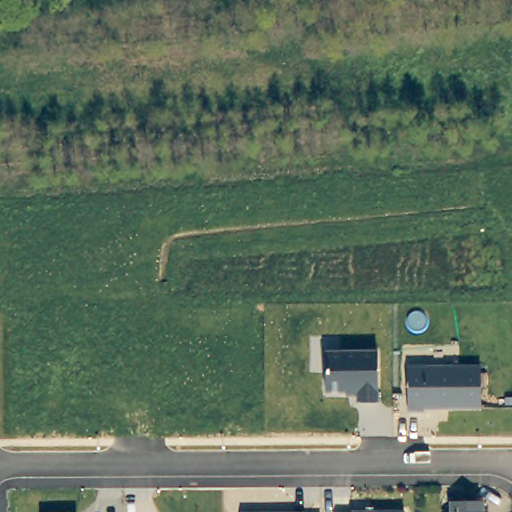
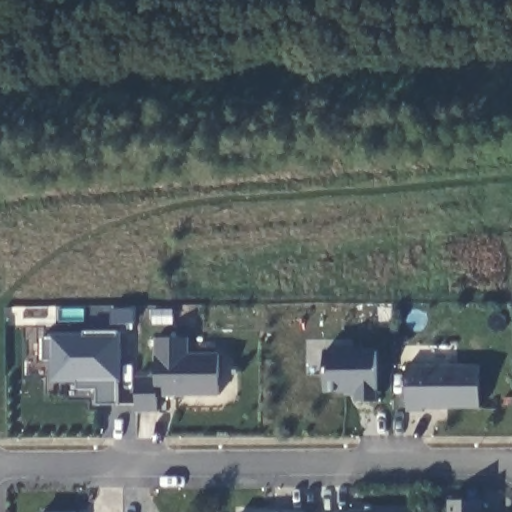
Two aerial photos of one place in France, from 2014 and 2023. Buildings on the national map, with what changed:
new [(40,336),(81,336),(81,330),(115,330),(116,404),(94,404),(94,388),(74,388),(74,378),(50,378),(50,360),(40,360),(40,336)]
new [(218,396),(157,395),(157,412),(136,413),(135,377),(155,375),(154,355),(151,355),(151,337),(189,338),(189,353),(218,353),(218,396)]
unchanged [(357,402),(357,393),(326,393),(323,351),(376,350),(378,402),(357,402)]
unchanged [(407,410),(407,367),(478,366),(479,407),(407,410)]
unchanged [(481,502),(482,512),(449,512),(448,502),(481,502)]
unchanged [(403,512),(337,512),(402,511),(403,512)]

